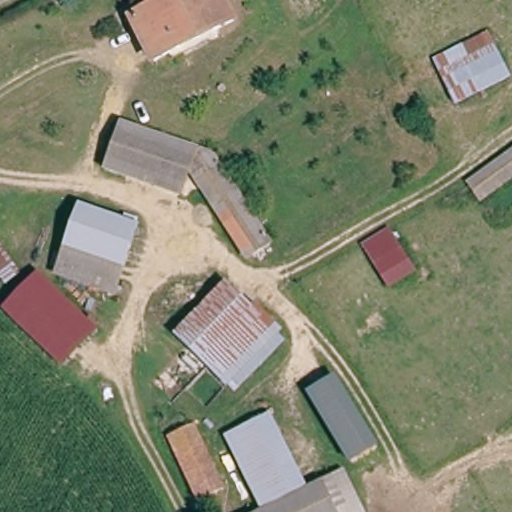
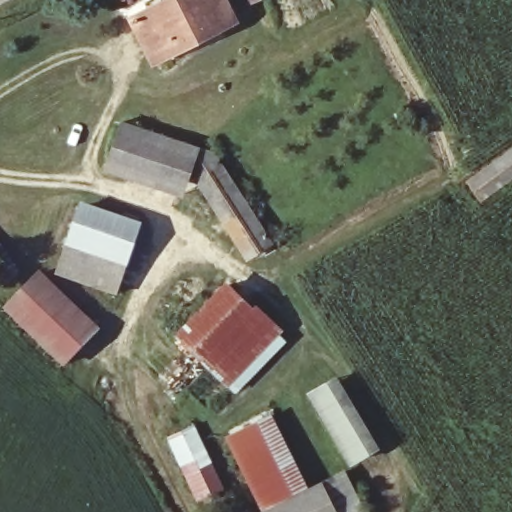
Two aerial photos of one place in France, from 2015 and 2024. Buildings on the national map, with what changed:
unchanged [(239,26),(157,58),(140,13),(172,0),(229,0),(239,26)]
demolished [(436,58),(491,30),(512,67),(512,78),(459,107),(436,58)]
unchanged [(147,173),(120,165),(130,136),(135,119),(142,121),(160,127),(147,173)]
unchanged [(160,127),(200,138),(210,141),(209,145),(195,188),(147,173),(160,127)]
unchanged [(484,201),(471,182),(512,153),(512,180),(484,201)]
unchanged [(208,188),(231,172),(262,217),(280,244),(283,248),(259,265),(254,257),(208,188)]
unchanged [(67,248),(82,208),(142,228),(131,264),(118,296),(57,276),(67,248)]
demolished [(363,243),(394,225),(423,268),(392,288),(363,243)]
unchanged [(0,307),(41,270),(100,327),(67,368),(0,307)]
unchanged [(231,284),(277,330),(230,380),(185,334),(231,284)]
unchanged [(339,376),(382,445),(350,461),(308,393),(339,376)]
unchanged [(227,436),(275,414),(310,486),(327,478),(341,512),(256,512),(262,509),(227,436)]
unchanged [(234,489),(210,502),(175,430),(200,418),(234,489)]
unchanged [(369,512),(341,512),(327,478),(344,466),(369,512)]

